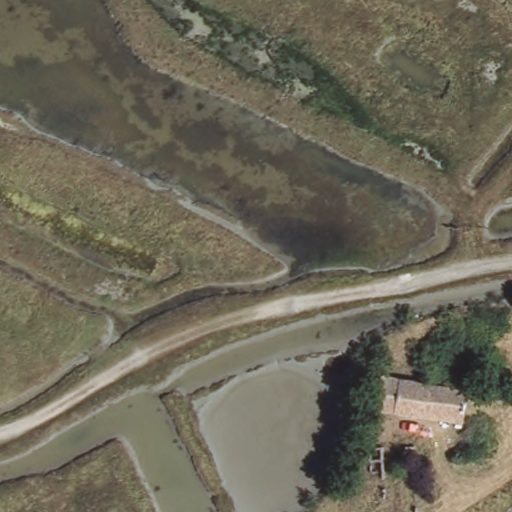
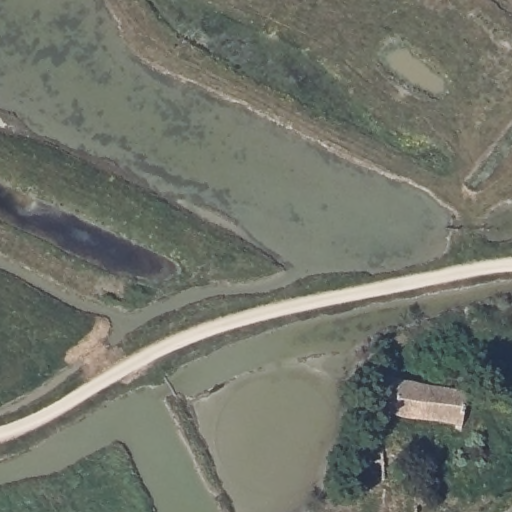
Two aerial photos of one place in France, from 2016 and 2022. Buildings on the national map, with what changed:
unchanged [(453,391),(468,393),(462,425),(372,407),(377,377),(453,391)]

